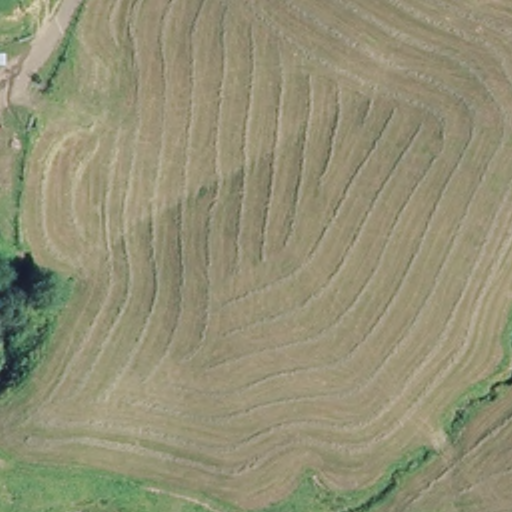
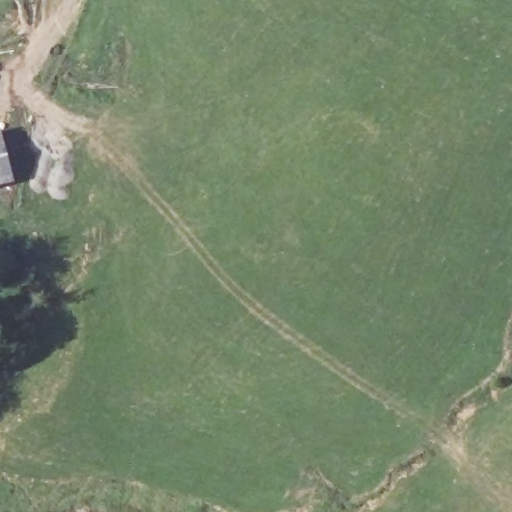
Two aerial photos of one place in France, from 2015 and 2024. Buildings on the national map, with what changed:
new [(2,131),(14,183),(0,186),(0,131),(2,131)]

